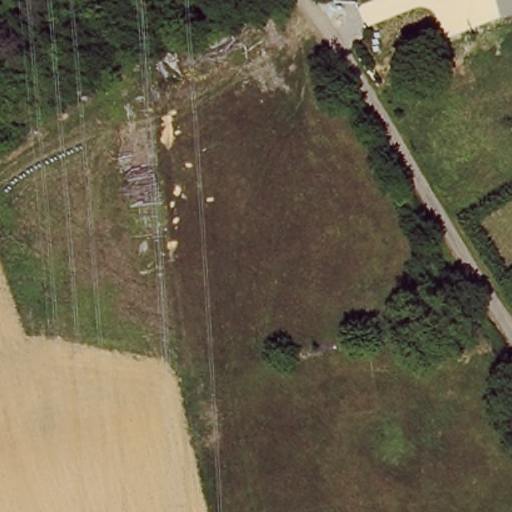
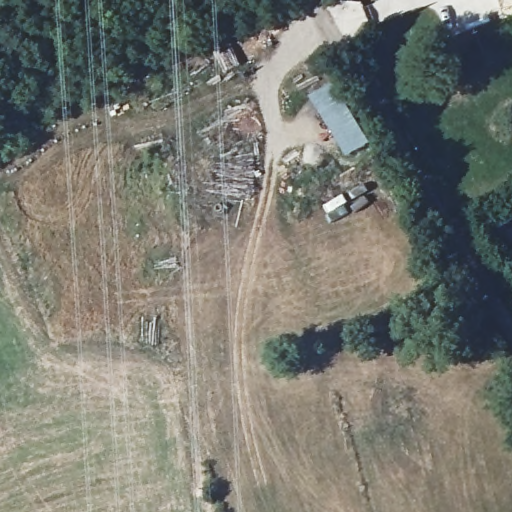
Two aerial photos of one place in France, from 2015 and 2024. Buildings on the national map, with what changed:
new [(310,99),(334,84),(372,145),(348,160),(310,99)]

